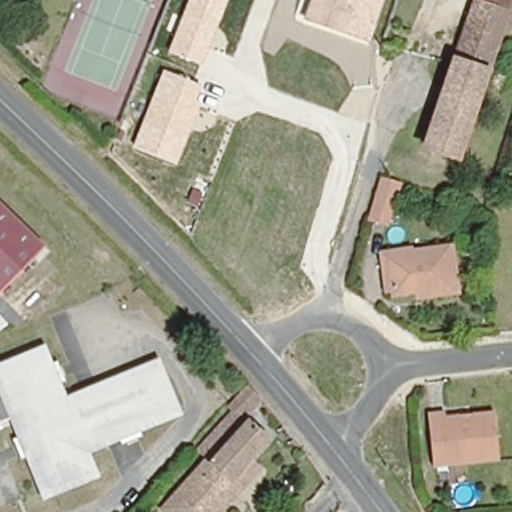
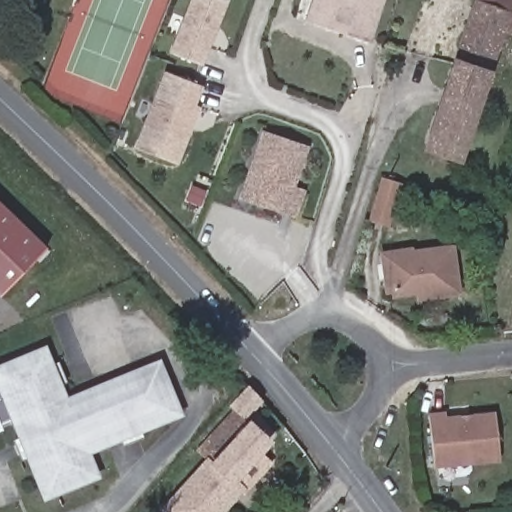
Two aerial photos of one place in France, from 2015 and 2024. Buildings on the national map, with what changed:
unchanged [(169,51),(189,0),(229,0),(202,64),(169,51)]
unchanged [(371,40),(309,18),(316,0),(386,0),(371,40)]
unchanged [(511,39),(500,37),(456,163),(425,152),(477,0),(512,0),(512,38),(511,39)]
unchanged [(200,107),(178,164),(134,146),(163,71),(201,86),(194,105),(200,107)]
new [(305,189),(295,218),(238,198),(262,131),(309,147),(296,185),(305,189)]
unchanged [(389,229),(368,221),(383,175),(402,184),(389,229)]
unchanged [(510,200),(512,184),(512,200),(510,200)]
unchanged [(0,290),(0,200),(48,248),(3,293),(0,290)]
unchanged [(383,270),(381,254),(409,249),(410,254),(453,247),(460,293),(419,299),(419,292),(397,293),(396,288),(394,288),(385,288),(383,270)]
unchanged [(185,415),(93,454),(101,477),(44,500),(11,421),(0,424),(4,430),(0,432),(0,365),(49,347),(69,396),(160,361),(185,415)]
unchanged [(211,461),(202,451),(223,428),(220,424),(253,387),(263,398),(246,418),(269,441),(235,481),(243,490),(233,501),(201,472),(211,461)]
unchanged [(448,415),(497,411),(501,460),(435,463),(431,413),(448,412),(448,415)]
unchanged [(201,472),(233,501),(223,512),(167,512),(165,510),(201,472)]

